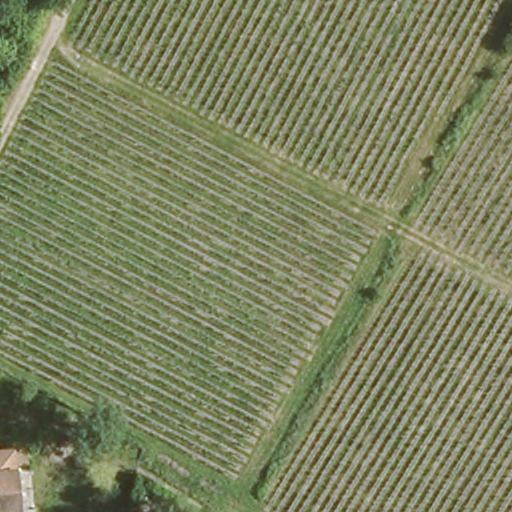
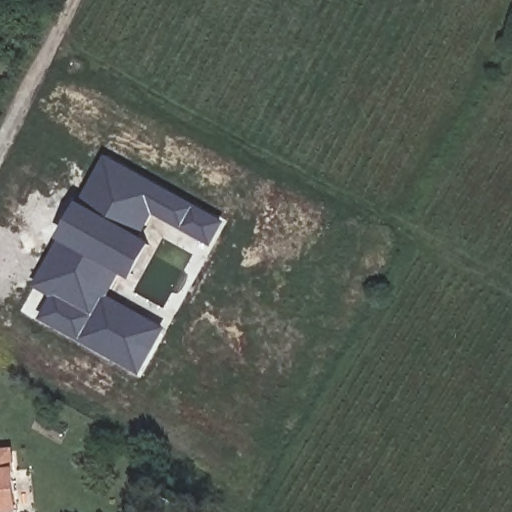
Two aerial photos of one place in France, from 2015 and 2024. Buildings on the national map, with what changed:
new [(42,321),(55,298),(36,287),(62,241),(82,203),(109,156),(229,222),(214,248),(157,217),(145,238),(156,244),(135,282),(125,276),(112,297),(168,329),(143,376),(42,321)]
unchanged [(22,499),(0,504),(0,448),(11,445),(22,499)]

